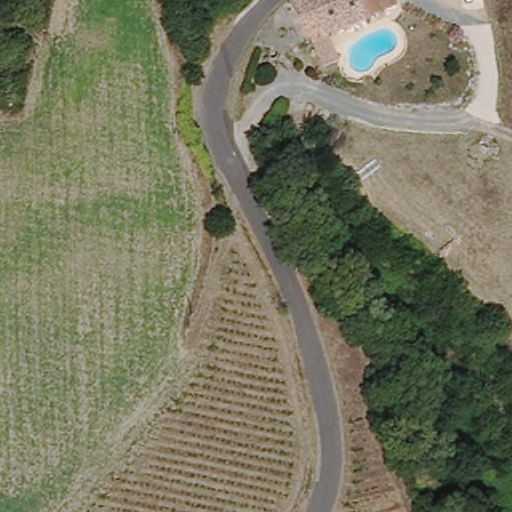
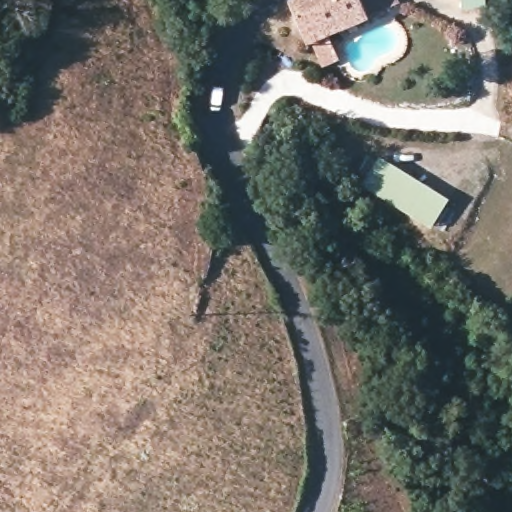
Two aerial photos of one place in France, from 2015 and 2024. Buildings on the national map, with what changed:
unchanged [(314,66),(304,42),(300,44),(285,6),(299,0),(323,0),(334,30),(321,35),(331,59),(314,66)]
unchanged [(365,19),(334,30),(323,0),(357,0),(365,19)]
unchanged [(392,7),(365,19),(357,0),(389,0),(392,7)]
new [(362,184),(379,156),(450,198),(430,227),(362,184)]

